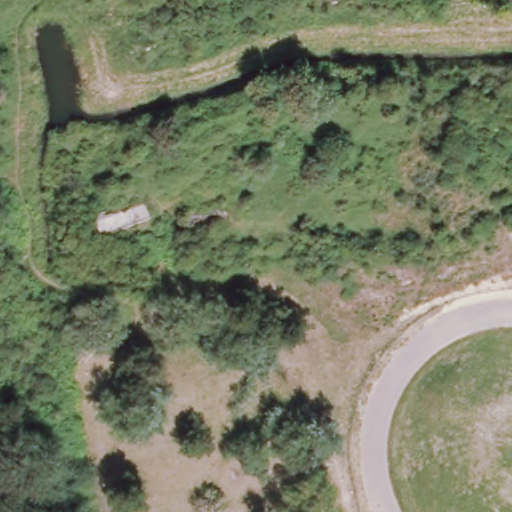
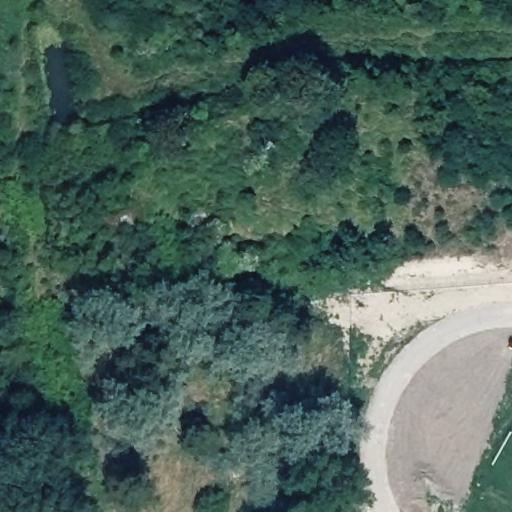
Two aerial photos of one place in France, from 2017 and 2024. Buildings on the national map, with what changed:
unchanged [(95,213),(142,203),(149,221),(99,231),(95,213)]

